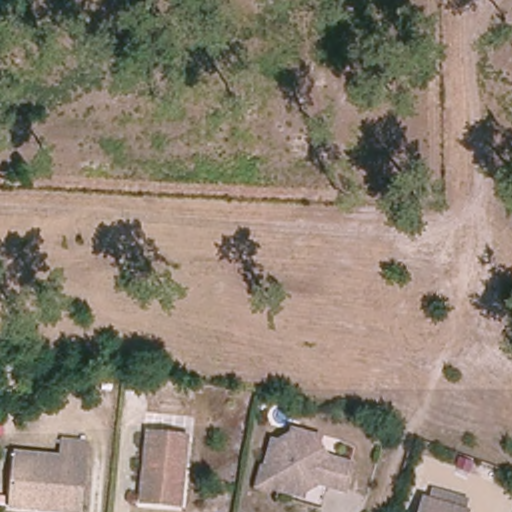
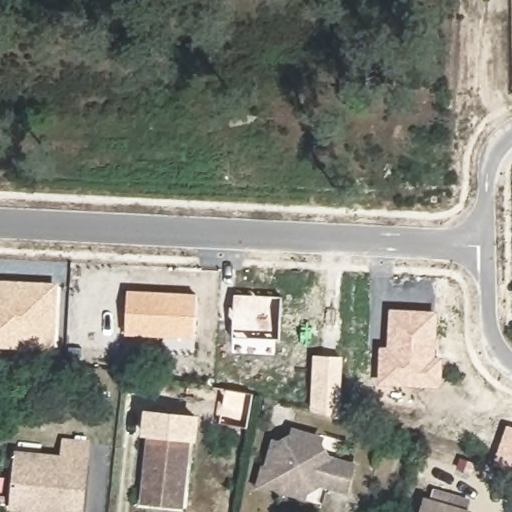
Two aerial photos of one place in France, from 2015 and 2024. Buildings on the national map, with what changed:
unchanged [(101,10),(98,23),(72,17),(75,4),(101,10)]
new [(0,348),(0,280),(58,282),(54,351),(0,348)]
new [(194,339),(125,335),(126,291),(196,294),(194,339)]
new [(282,296),(280,340),(233,338),(234,294),(282,296)]
new [(388,346),(389,308),(438,310),(436,356),(443,356),(442,387),(378,385),(379,346),(388,346)]
new [(341,413),(310,412),(312,355),(344,357),(341,413)]
unchanged [(316,437),(315,441),(325,458),(348,464),(342,488),(318,481),(302,491),(301,495),(277,489),(277,485),(267,467),(265,466),(270,442),(274,443),(291,435),(292,430),(316,437)]
unchanged [(186,436),(181,492),(163,491),(162,503),(139,502),(146,433),(186,436)]
unchanged [(80,512),(75,512),(10,505),(15,457),(84,464),(80,512)]
unchanged [(467,512),(420,512),(423,498),(467,511),(467,512)]

